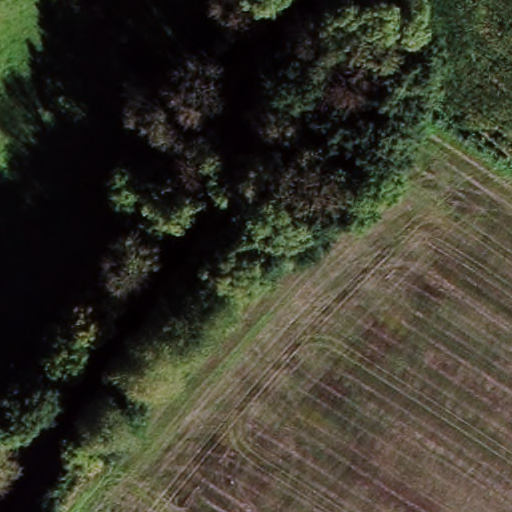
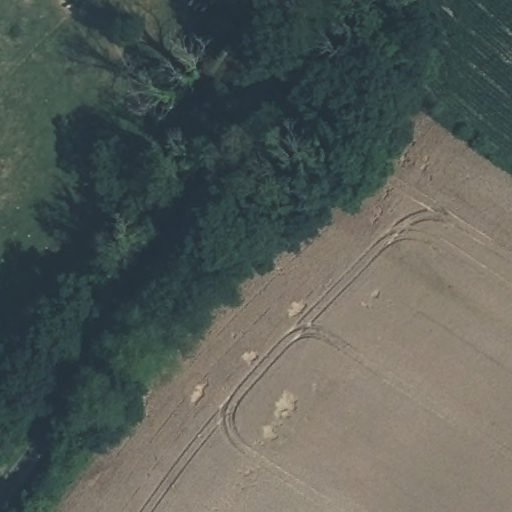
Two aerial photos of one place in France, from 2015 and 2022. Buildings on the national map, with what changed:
[]

